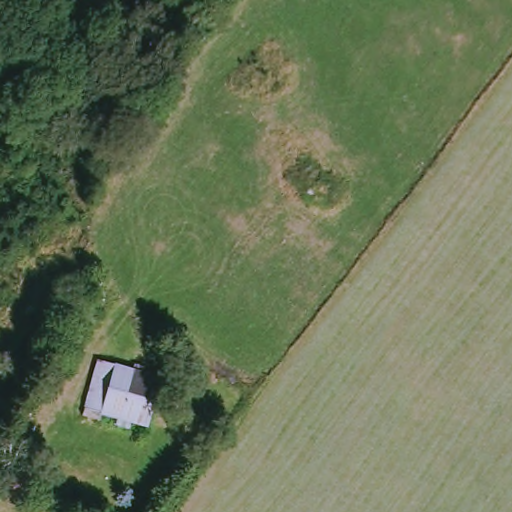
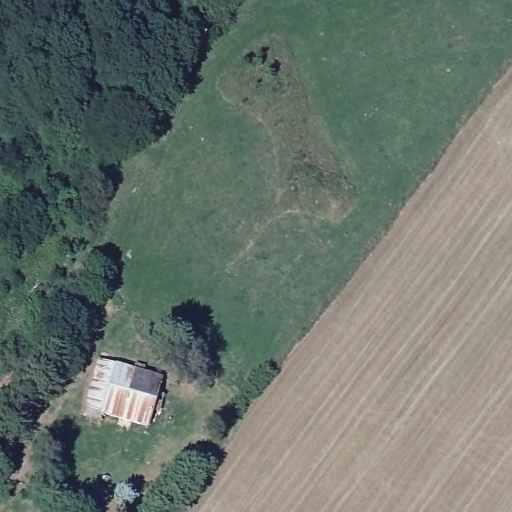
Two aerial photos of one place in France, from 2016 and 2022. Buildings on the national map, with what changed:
unchanged [(92,360),(110,362),(128,367),(132,362),(141,365),(139,372),(152,375),(138,426),(98,414),(83,415),(92,360)]

